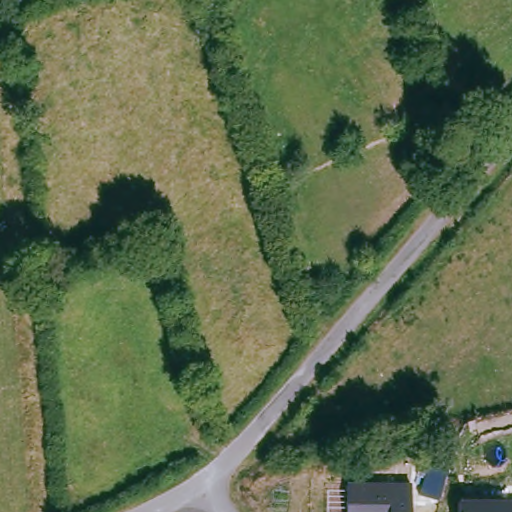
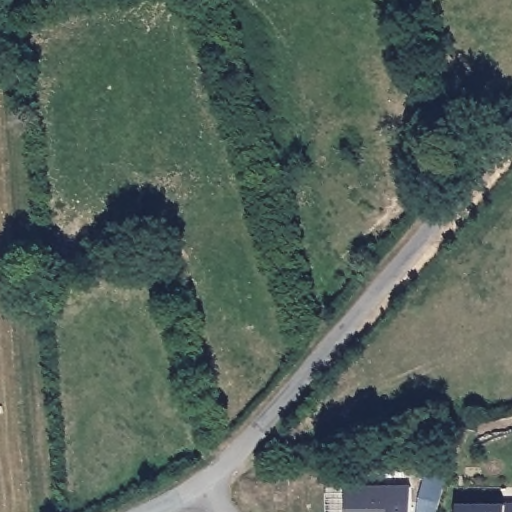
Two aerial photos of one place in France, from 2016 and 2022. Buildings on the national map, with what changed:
unchanged [(347,481),(410,481),(411,512),(346,512),(347,481)]
unchanged [(505,499),(512,500),(512,512),(458,512),(457,499),(505,499)]

